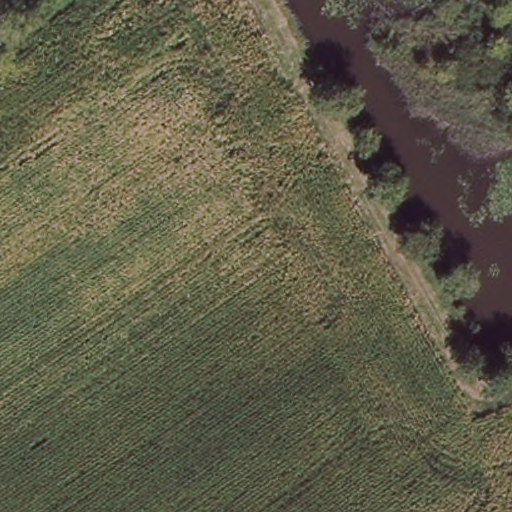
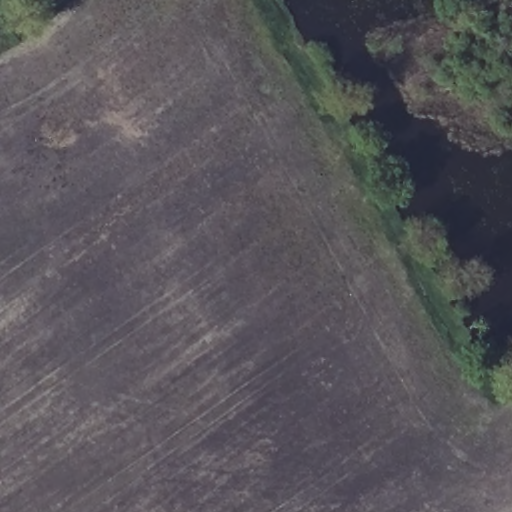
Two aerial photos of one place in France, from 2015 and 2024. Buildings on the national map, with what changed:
[]

